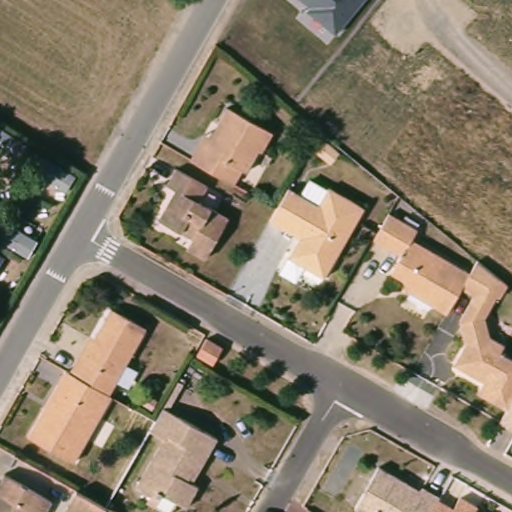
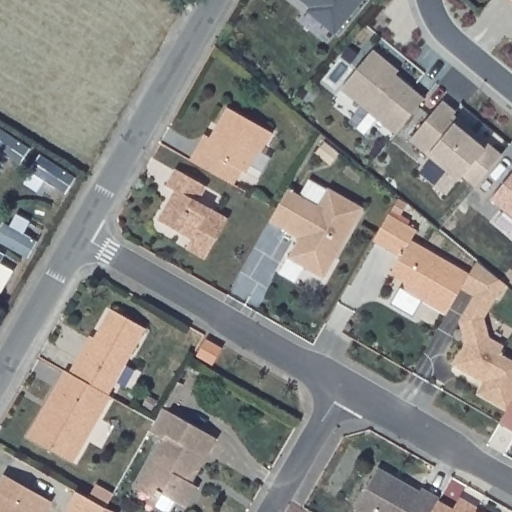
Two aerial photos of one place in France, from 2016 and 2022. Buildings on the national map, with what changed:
unchanged [(335,33),(305,9),(310,4),(305,0),(363,0),(335,33)]
new [(400,71),(396,75),(413,89),(425,99),(396,135),(342,90),(374,50),(400,71)]
new [(456,113),(454,116),(489,145),(502,156),(475,188),(463,177),(459,182),(410,141),(443,102),(456,113)]
unchanged [(270,131),(260,148),(256,146),(243,169),(237,166),(228,182),(184,157),(193,143),(200,131),(205,134),(222,103),(270,131)]
unchanged [(164,185),(173,170),(205,188),(196,202),(227,220),(204,261),(185,250),(193,234),(181,227),(177,233),(155,220),(172,189),(164,185)]
new [(512,217),(492,199),(512,175),(512,217)]
unchanged [(264,215),(271,202),(283,182),(312,199),(323,182),(358,202),(318,272),(283,252),(294,232),(282,225),(264,215)]
unchanged [(412,227),(407,238),(466,270),(443,311),(402,288),(400,278),(387,270),(397,253),(370,238),(384,212),(412,227)]
unchanged [(476,393),(482,382),(452,364),(465,346),(459,320),(472,296),(458,285),(466,270),(473,257),(506,282),(486,311),(491,337),(501,344),(498,351),(512,359),(512,396),(506,407),(476,393)]
unchanged [(77,351),(83,354),(112,303),(147,324),(106,393),(66,370),(77,351)]
unchanged [(216,346),(208,362),(196,355),(205,339),(216,346)]
unchanged [(66,370),(106,393),(110,395),(70,461),(25,433),(63,368),(66,370)]
unchanged [(506,407),(512,396),(512,430),(497,422),(506,407)]
unchanged [(162,439),(148,431),(154,421),(157,415),(161,408),(222,443),(205,473),(192,471),(186,481),(197,487),(185,508),(175,502),(170,512),(160,512),(146,503),(150,497),(134,488),(162,439)]
unchanged [(400,482),(413,489),(415,486),(432,496),(430,499),(423,512),(358,512),(348,506),(371,465),(400,482)]
unchanged [(48,499),(40,512),(0,512),(0,478),(3,473),(48,499)]
unchanged [(109,512),(71,512),(81,494),(110,511),(109,512)]
unchanged [(446,508),(452,496),(470,506),(466,512),(423,512),(430,499),(446,508)]

